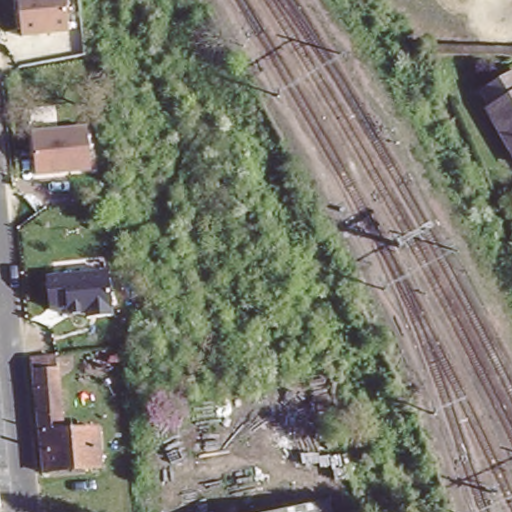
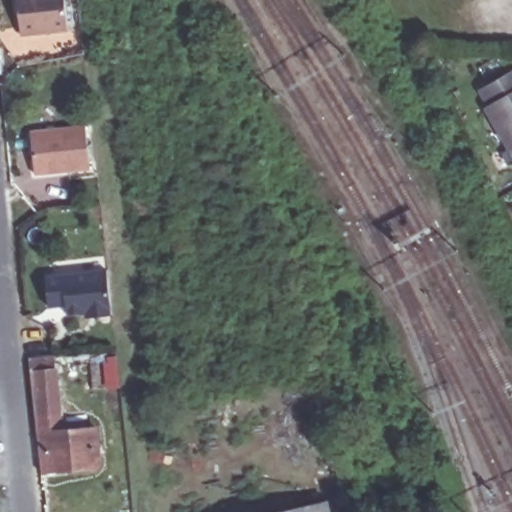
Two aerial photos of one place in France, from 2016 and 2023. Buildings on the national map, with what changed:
unchanged [(69,29),(20,37),(16,0),(65,0),(69,29)]
unchanged [(512,80),(512,153),(490,116),(493,113),(484,97),(512,80)]
unchanged [(30,131),(85,126),(89,171),(34,175),(30,131)]
unchanged [(109,268),(113,315),(87,318),(87,315),(67,318),(66,310),(50,313),(47,275),(109,268)]
unchanged [(65,440),(102,437),(105,474),(45,478),(35,368),(57,367),(65,440)]
unchanged [(276,512),(326,501),(329,512),(276,512)]

